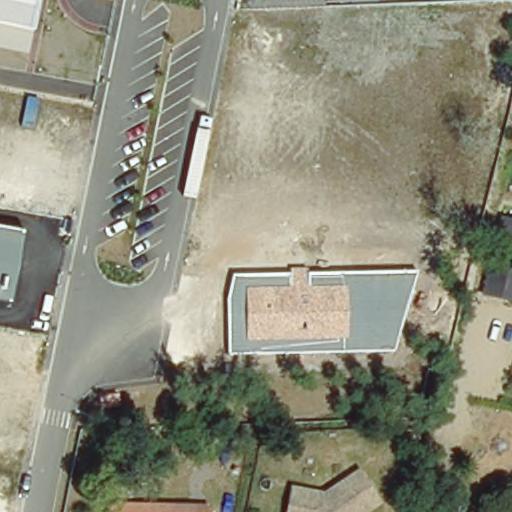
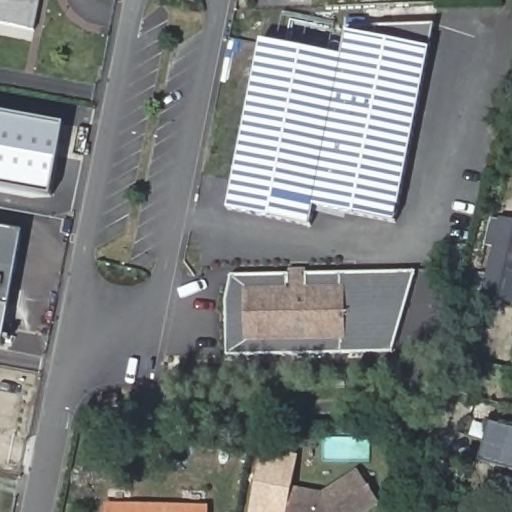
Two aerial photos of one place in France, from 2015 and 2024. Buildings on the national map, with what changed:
unchanged [(0,25),(0,0),(41,0),(34,31),(0,25)]
new [(341,58),(347,26),(347,18),(362,16),(362,26),(435,23),(397,221),(316,207),(312,226),(229,210),(261,43),(341,58)]
new [(50,202),(0,192),(0,117),(64,129),(50,202)]
unchanged [(500,225),(512,227),(512,296),(510,303),(482,295),(500,225)]
unchanged [(0,305),(0,228),(22,232),(10,307),(0,305)]
unchanged [(393,352),(229,355),(227,303),(234,275),(415,271),(393,352)]
new [(0,345),(0,305),(10,307),(2,345),(0,345)]
new [(512,429),(512,470),(480,461),(491,423),(512,429)]
new [(261,450),(295,455),(288,491),(284,512),(250,512),(261,450)]
unchanged [(288,491),(320,497),(355,473),(376,504),(364,512),(284,512),(288,491)]
unchanged [(117,506),(212,508),(212,512),(117,512),(117,506)]

